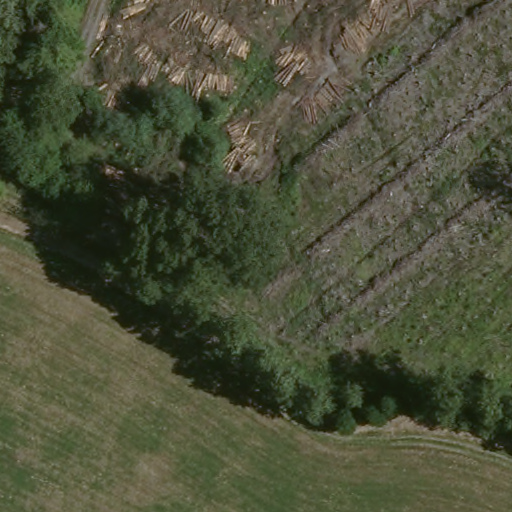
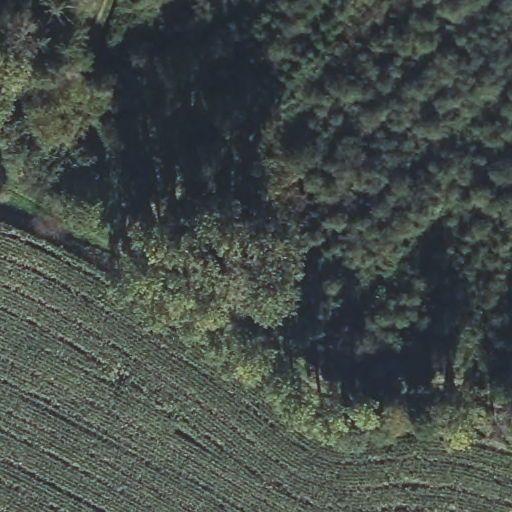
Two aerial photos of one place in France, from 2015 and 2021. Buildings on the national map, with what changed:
[]

